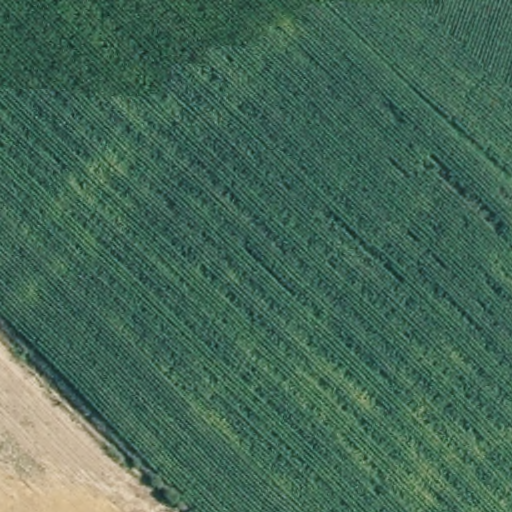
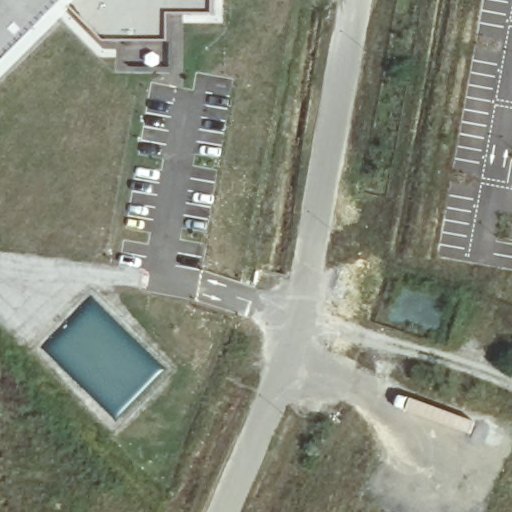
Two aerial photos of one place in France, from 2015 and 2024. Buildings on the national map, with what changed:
new [(65,14),(5,69),(0,74),(0,0),(78,0),(65,14)]
new [(78,0),(213,0),(213,15),(169,15),(169,42),(126,42),(102,45),(100,46),(65,14),(78,0)]

